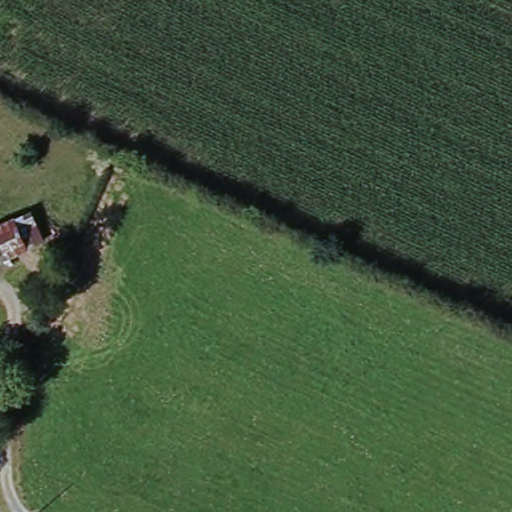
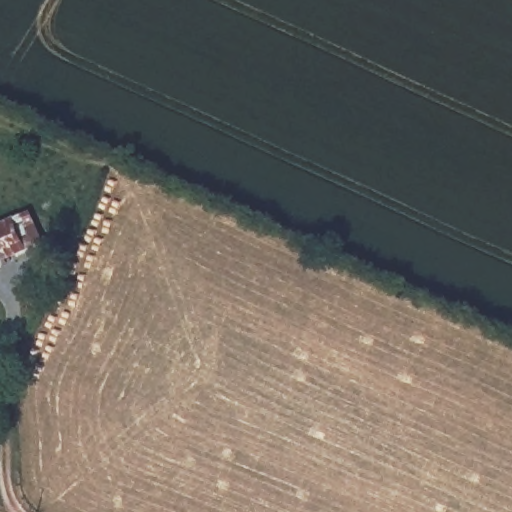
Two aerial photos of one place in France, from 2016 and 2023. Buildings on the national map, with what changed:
unchanged [(0,264),(0,229),(9,225),(23,252),(0,264)]

